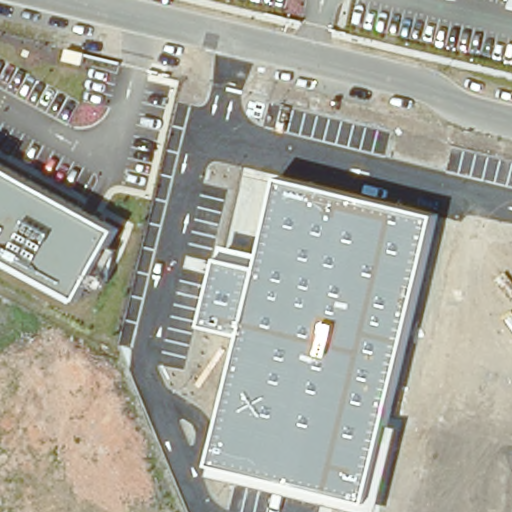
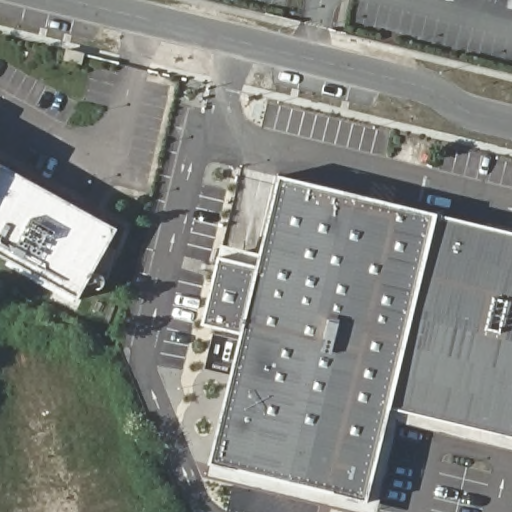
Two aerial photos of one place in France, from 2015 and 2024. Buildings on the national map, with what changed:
unchanged [(508,10),(511,0),(512,0),(512,10),(508,10)]
unchanged [(0,166),(0,164),(4,166),(0,166)]
unchanged [(79,297),(0,254),(0,166),(117,230),(79,297)]
unchanged [(384,425),(399,428),(379,512),(361,512),(208,476),(211,464),(214,464),(209,463),(241,334),(202,325),(219,258),(222,259),(221,256),(223,246),(256,255),(260,256),(279,177),(438,213),(387,425),(384,425)]
new [(388,419),(438,213),(512,231),(512,450),(388,419)]

